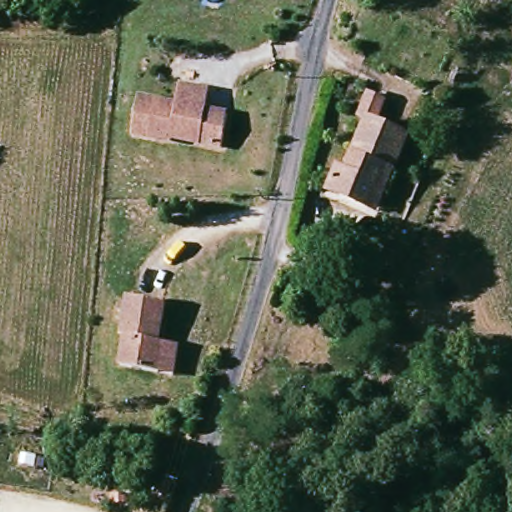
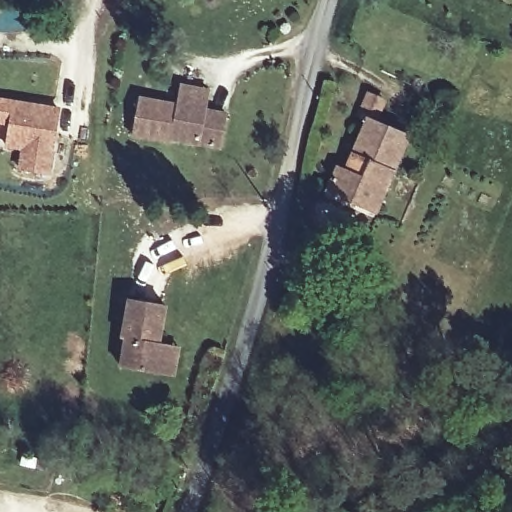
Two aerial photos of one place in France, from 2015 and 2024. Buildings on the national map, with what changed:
unchanged [(178,100),(181,85),(212,90),(210,109),(229,113),(223,152),(134,136),(143,95),(178,100)]
new [(48,171),(19,166),(23,146),(6,144),(10,121),(0,120),(0,97),(58,106),(48,171)]
unchanged [(364,205),(331,195),(339,166),(346,169),(366,120),(404,132),(389,170),(374,210),(364,205)]
unchanged [(162,370),(124,363),(130,335),(126,335),(134,295),(171,303),(164,341),(168,341),(183,344),(177,373),(162,370)]

